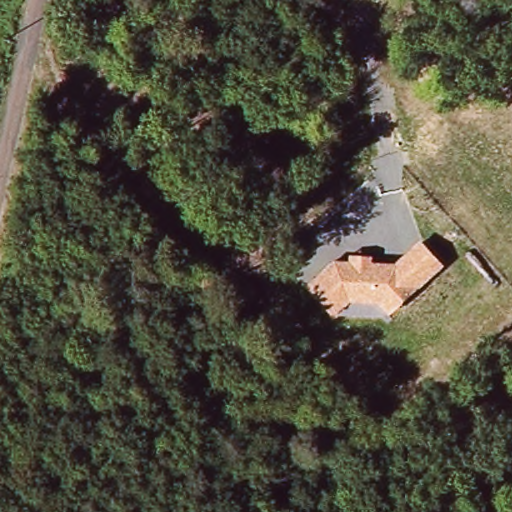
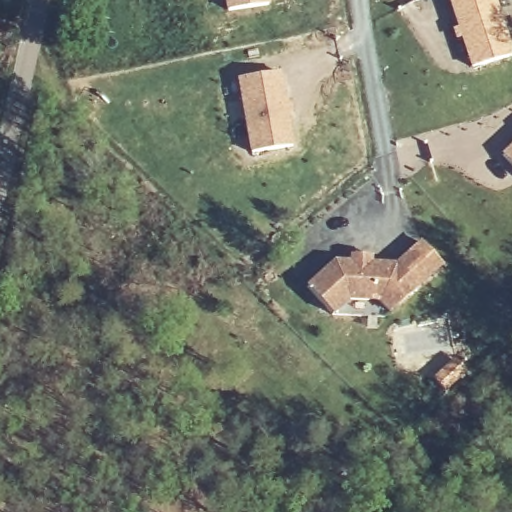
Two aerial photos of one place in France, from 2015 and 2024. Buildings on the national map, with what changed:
new [(223,0),(270,0),(270,5),(225,11),(223,0)]
new [(512,51),(512,56),(470,69),(448,0),(496,0),(512,51)]
new [(282,70),(295,146),(250,155),(237,79),(282,70)]
new [(512,144),(512,166),(502,154),(512,144)]
unchanged [(305,289),(332,262),(348,263),(349,255),(373,256),(372,265),(397,266),(420,242),(444,268),(388,318),(377,305),(348,303),(332,320),(305,289)]

